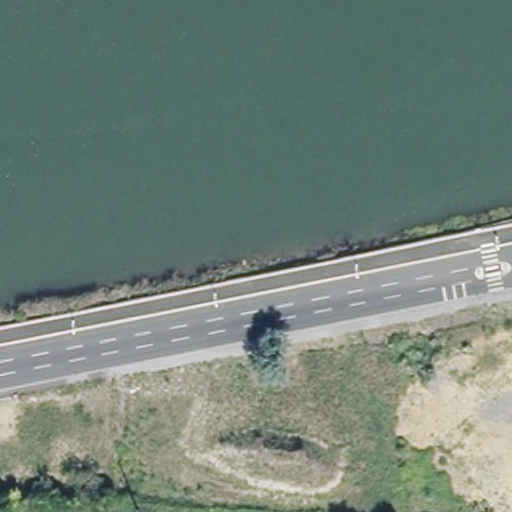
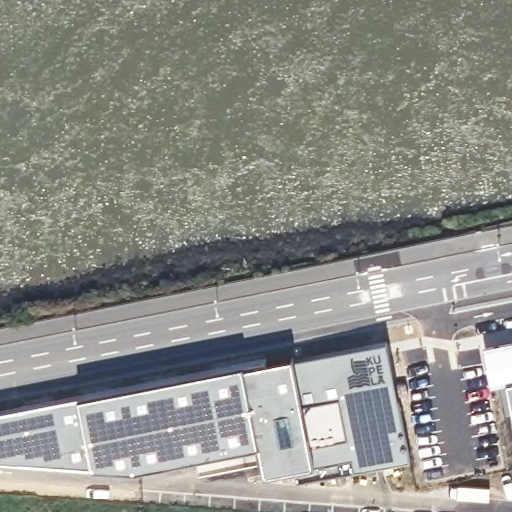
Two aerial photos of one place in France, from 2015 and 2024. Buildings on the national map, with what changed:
demolished [(365,338),(372,422),(368,423),(332,426),(324,426),(315,343),(365,338)]
new [(512,414),(505,383),(489,385),(482,346),(512,340),(512,414)]
new [(233,365),(309,356),(387,341),(395,393),(410,460),(341,474),(297,480),(295,471),(263,475),(260,464),(257,448),(194,460),(148,468),(119,469),(0,460),(0,410),(233,365)]
demolished [(218,347),(217,343),(242,341),(245,399),(225,400),(225,414),(212,415),(212,401),(209,348),(218,347)]
demolished [(160,404),(161,419),(137,421),(132,352),(177,348),(177,350),(180,402),(160,404)]
demolished [(209,348),(212,401),(180,402),(177,350),(209,348)]
demolished [(76,408),(75,423),(96,424),(94,452),(44,449),(43,459),(21,458),(25,404),(76,408)]
demolished [(371,467),(336,469),(332,426),(368,423),(371,467)]
demolished [(8,447),(4,492),(0,492),(0,446),(8,447)]
new [(257,448),(260,464),(197,475),(194,460),(257,448)]
demolished [(242,498),(222,498),(183,493),(181,465),(190,465),(220,462),(222,486),(241,485),(242,498)]
demolished [(275,464),(276,497),(258,498),(256,465),(275,464)]

